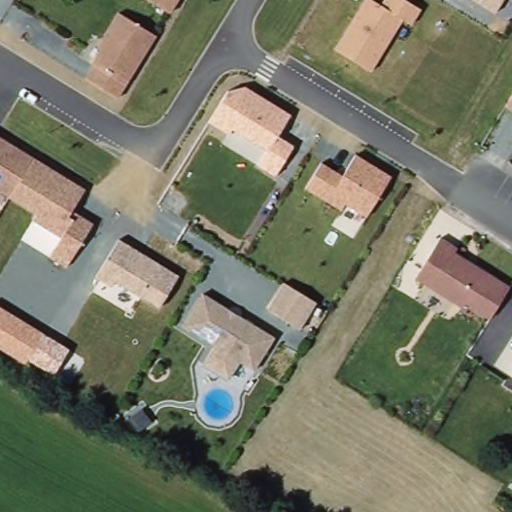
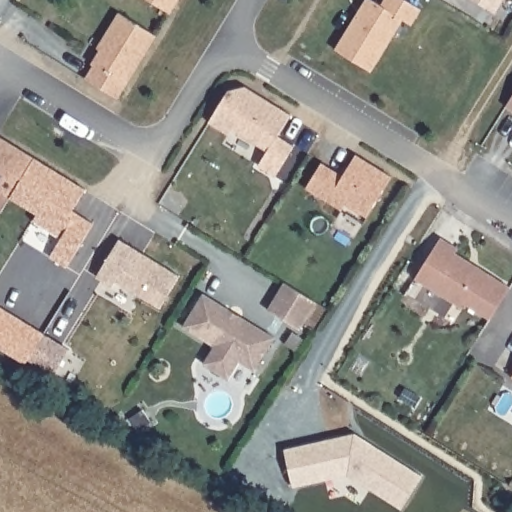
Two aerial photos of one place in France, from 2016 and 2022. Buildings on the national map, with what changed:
unchanged [(144,0),(179,0),(171,14),(144,0)]
unchanged [(362,0),(372,0),(380,5),(382,0),(404,0),(419,9),(410,24),(401,19),(371,70),(334,47),(362,0)]
unchanged [(476,0),(502,0),(495,12),(476,0)]
unchanged [(155,37),(117,100),(81,80),(118,14),(155,37)]
unchanged [(257,164),(265,149),(231,129),(228,136),(207,122),(226,89),(245,85),(292,116),(277,136),(294,147),(275,175),(257,164)]
unchanged [(512,90),(512,114),(502,108),(512,90)]
unchanged [(9,200),(0,194),(0,139),(33,157),(9,200)]
unchanged [(344,174),(353,155),(390,176),(365,218),(341,205),(337,211),(336,212),(305,190),(321,163),(344,174)]
unchanged [(33,157),(83,189),(71,209),(91,223),(64,266),(48,257),(61,236),(31,221),(35,214),(9,200),(33,157)]
unchanged [(115,278),(109,286),(95,277),(117,237),(178,275),(158,306),(115,278)]
unchanged [(437,238),(454,249),(451,253),(506,288),(486,321),(462,305),(459,309),(412,278),(437,238)]
unchanged [(267,308),(283,282),(315,302),(300,327),(267,308)]
unchanged [(273,336),(252,371),(182,328),(203,295),(273,336)]
unchanged [(0,308),(41,334),(23,362),(0,348),(0,308)]
unchanged [(238,362),(227,379),(201,365),(211,346),(238,362)]
unchanged [(512,367),(512,379),(507,376),(512,367)]
new [(348,474),(293,486),(285,450),(353,435),(355,445),(366,442),(420,477),(400,508),(348,474)]

